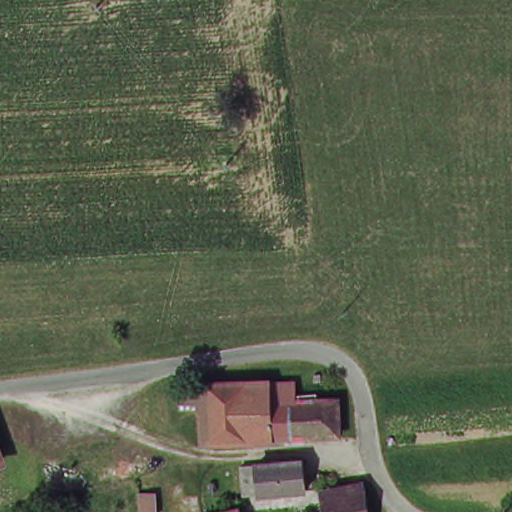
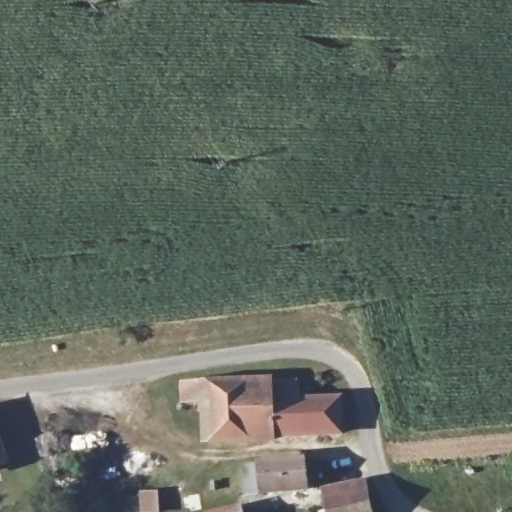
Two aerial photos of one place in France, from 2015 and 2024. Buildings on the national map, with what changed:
unchanged [(287,430),(280,379),(310,377),(311,398),(330,398),(337,428),(286,436),(285,431),(287,430)]
unchanged [(207,442),(200,382),(280,379),(285,431),(207,442)]
unchanged [(255,499),(251,463),(297,455),(304,490),(255,499)]
unchanged [(361,492),(367,512),(330,512),(327,499),(361,492)]
unchanged [(239,512),(215,512),(237,506),(239,512)]

